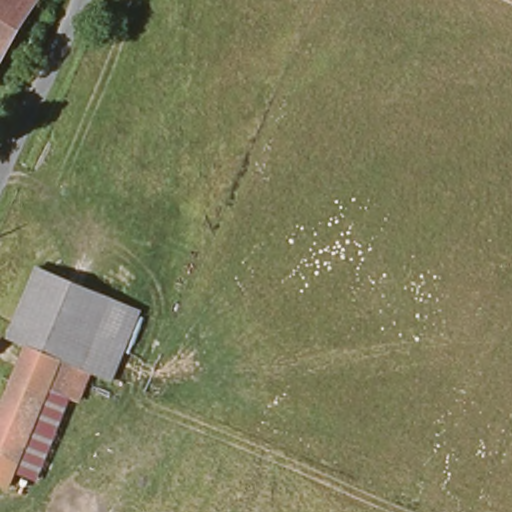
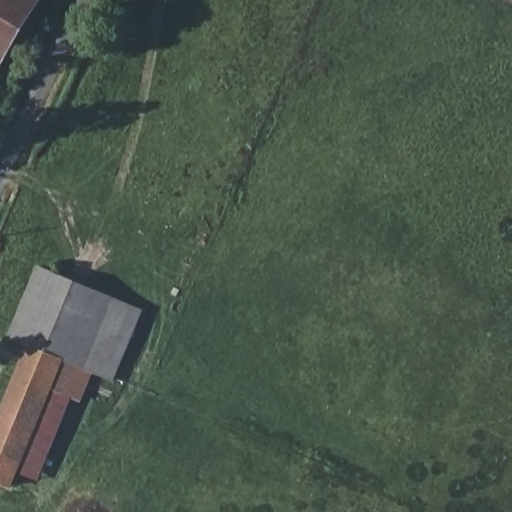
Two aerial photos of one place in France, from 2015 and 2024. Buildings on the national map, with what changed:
unchanged [(0,69),(0,0),(44,0),(5,71),(0,69)]
unchanged [(30,349),(12,342),(41,269),(140,308),(110,379),(63,363),(11,489),(0,485),(0,427),(12,396),(30,349)]

